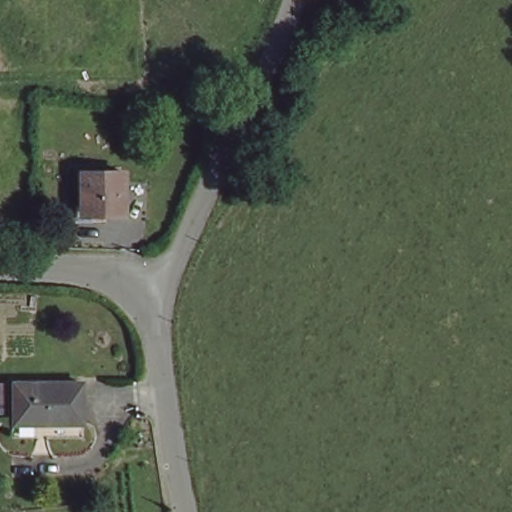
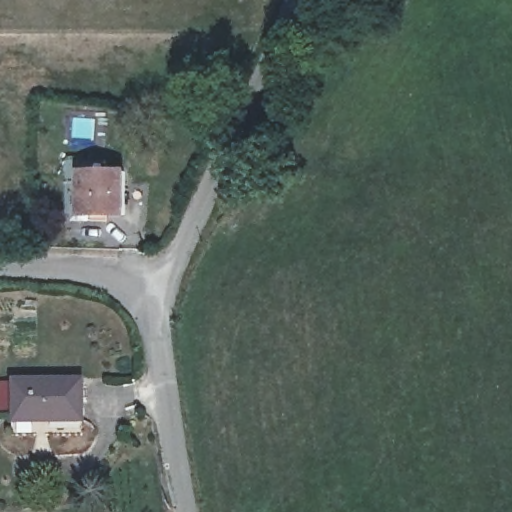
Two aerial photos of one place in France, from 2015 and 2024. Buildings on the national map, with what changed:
unchanged [(85,217),(85,173),(132,173),(130,217),(85,217)]
unchanged [(86,379),(85,418),(19,417),(21,379),(86,379)]

